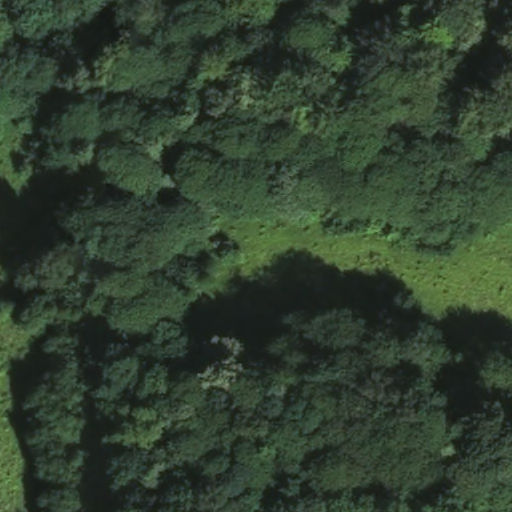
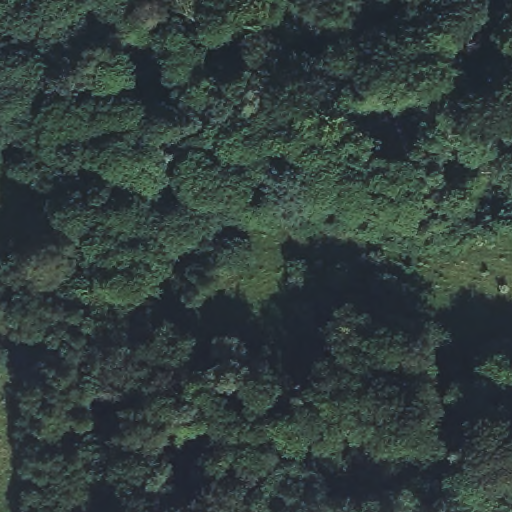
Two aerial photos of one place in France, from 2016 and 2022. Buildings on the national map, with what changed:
[]

